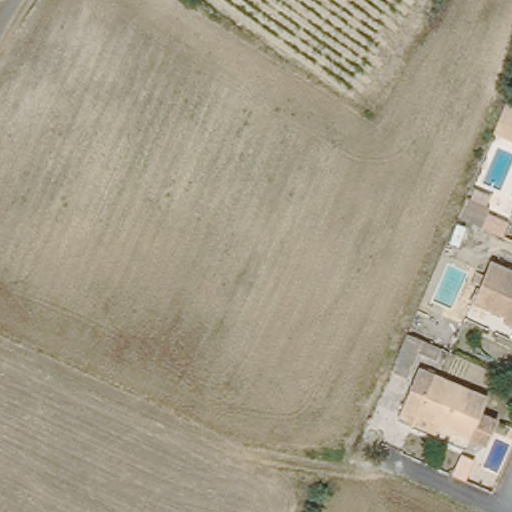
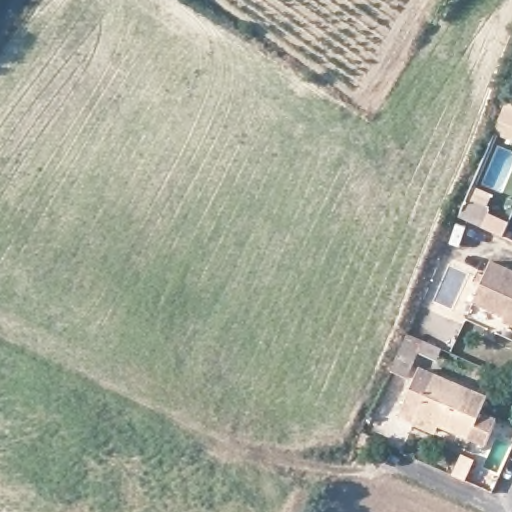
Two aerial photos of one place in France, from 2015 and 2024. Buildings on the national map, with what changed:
unchanged [(512,111),(512,138),(502,134),(512,111)]
unchanged [(512,221),(512,243),(496,235),(504,217),(512,221)]
unchanged [(501,313),(474,300),(493,259),(512,269),(512,323),(499,317),(501,313)]
unchanged [(483,421),(503,431),(495,449),(491,457),(445,437),(416,423),(414,428),(402,422),(419,387),(395,375),(412,341),(426,349),(416,374),(489,408),(483,421)]
unchanged [(512,438),(512,439),(511,439),(512,438)]

